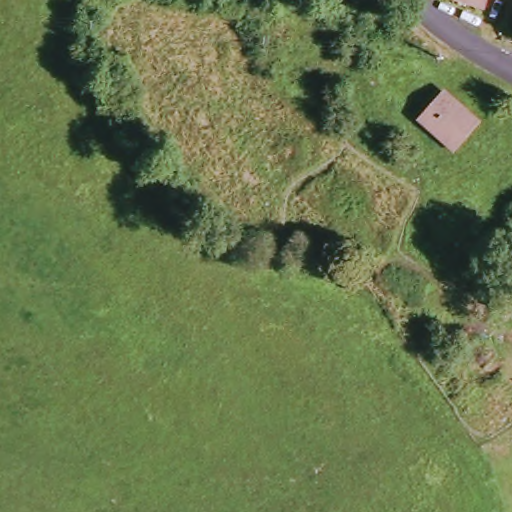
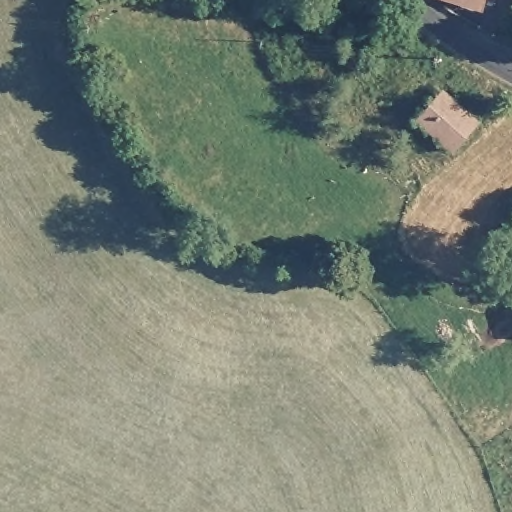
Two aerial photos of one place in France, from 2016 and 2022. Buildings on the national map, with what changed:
unchanged [(457,0),(489,0),(487,9),(457,0)]
unchanged [(509,4),(510,0),(512,0),(512,5),(509,4)]
unchanged [(483,120),(457,152),(419,120),(440,92),(462,110),(465,106),(483,120)]

